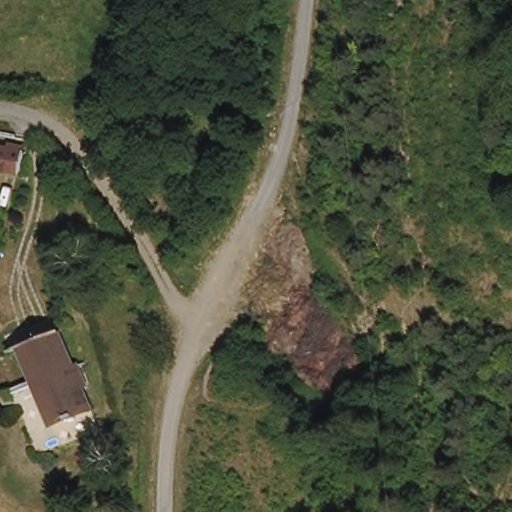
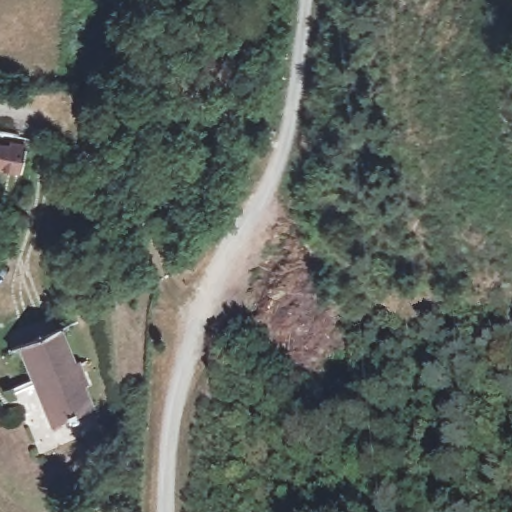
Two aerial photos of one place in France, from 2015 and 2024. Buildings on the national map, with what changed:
unchanged [(8,139),(26,144),(18,175),(0,172),(0,143),(7,144),(8,139)]
unchanged [(14,346),(61,328),(93,408),(46,426),(14,346)]

